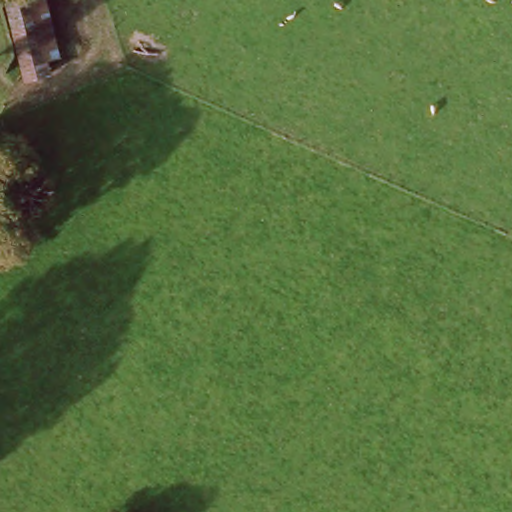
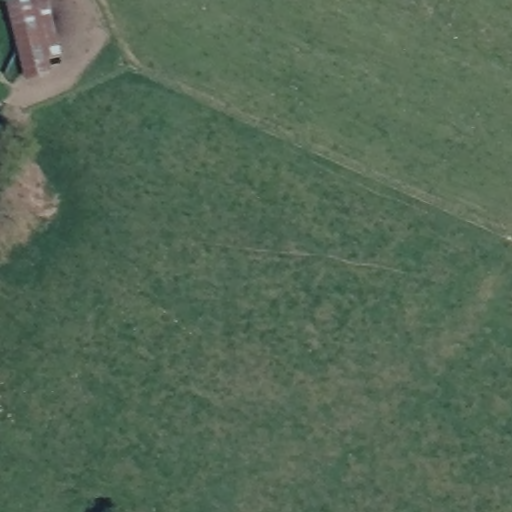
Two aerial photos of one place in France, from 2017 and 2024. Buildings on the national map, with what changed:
unchanged [(22,0),(44,0),(57,62),(45,64),(48,80),(24,81),(8,4),(22,0)]

